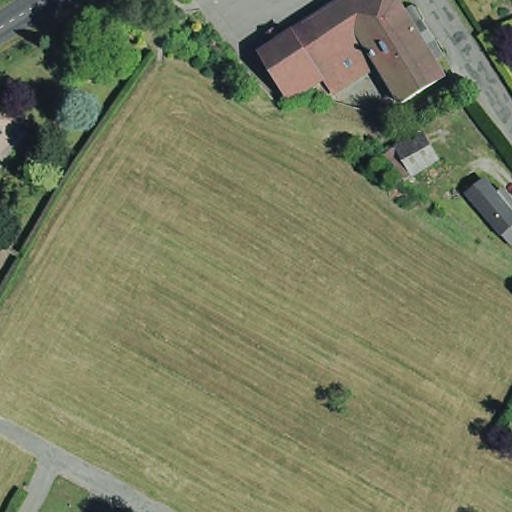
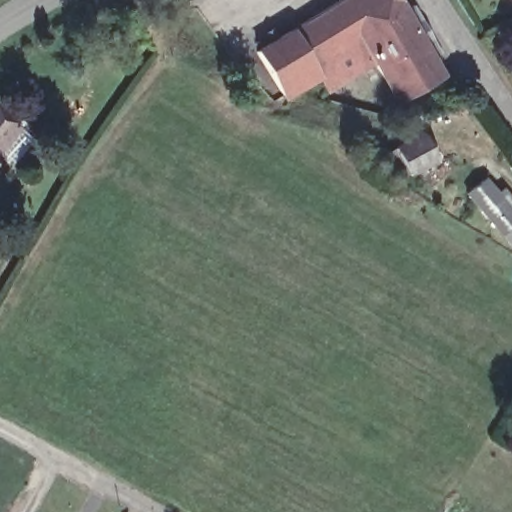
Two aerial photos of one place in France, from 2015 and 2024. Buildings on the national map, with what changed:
unchanged [(395,102),(372,64),(328,91),(319,75),(282,97),(254,52),(267,45),(261,36),(270,30),(276,39),(338,0),(392,0),(400,12),(408,7),(417,22),(427,40),(436,54),(427,59),(438,77),(395,102)]
unchanged [(29,132),(4,159),(0,164),(0,105),(22,126),(29,132)]
unchanged [(378,153),(395,144),(422,129),(436,156),(410,170),(402,175),(378,153)]
unchanged [(502,235),(467,193),(483,180),(496,195),(501,190),(512,203),(512,206),(508,209),(512,213),(512,247),(502,235)]

